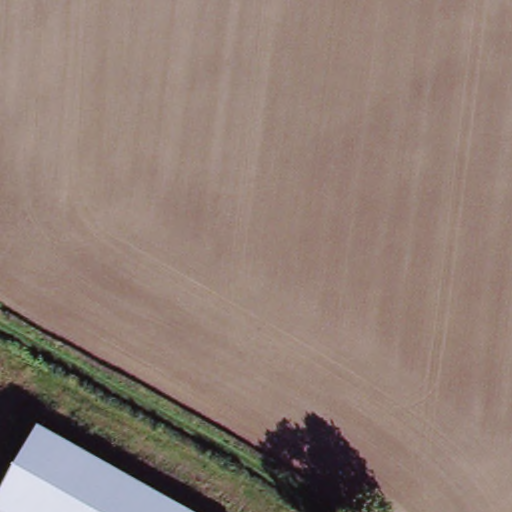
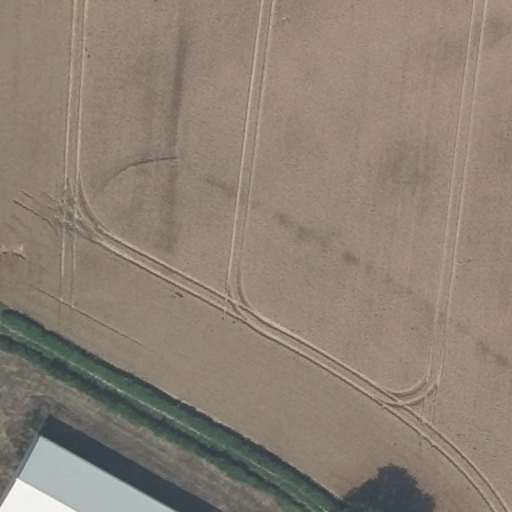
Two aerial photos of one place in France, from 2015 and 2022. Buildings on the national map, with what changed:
unchanged [(183,512),(2,512),(16,488),(46,434),(183,512)]

